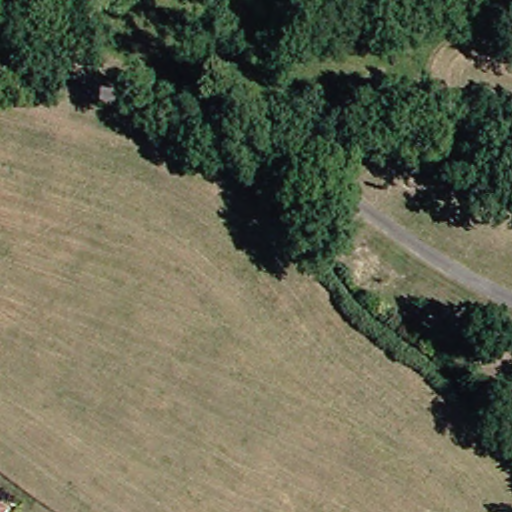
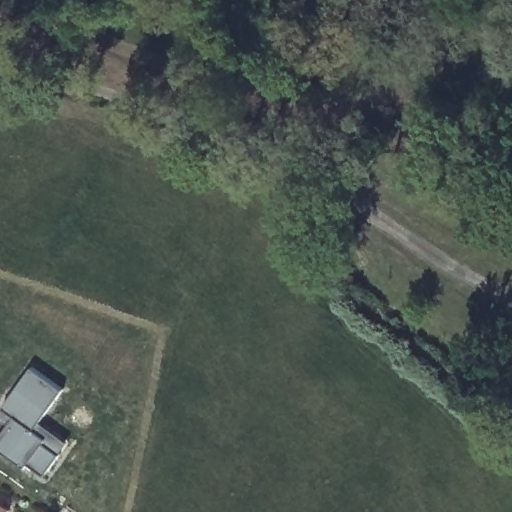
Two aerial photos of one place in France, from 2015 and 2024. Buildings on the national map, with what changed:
new [(41,476),(25,463),(22,468),(0,451),(0,432),(6,423),(1,419),(6,411),(0,407),(31,366),(62,389),(37,421),(66,442),(56,454),(41,476)]
unchanged [(0,512),(0,508),(5,512),(0,512)]

